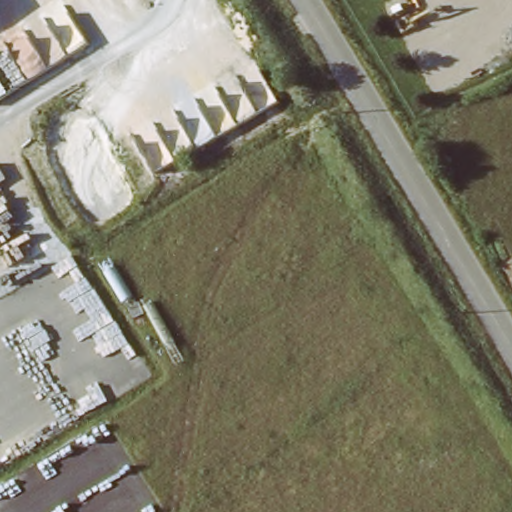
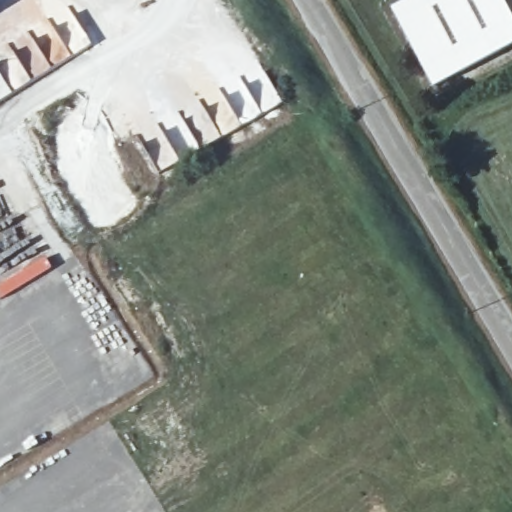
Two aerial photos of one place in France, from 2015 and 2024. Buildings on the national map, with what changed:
new [(411,0),(508,0),(512,7),(512,47),(437,87),(396,8),(411,0)]

